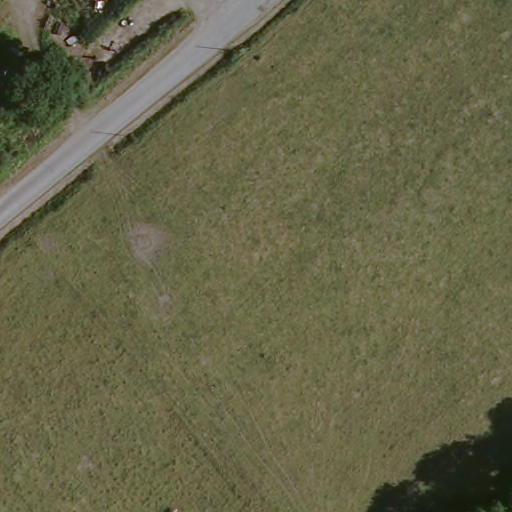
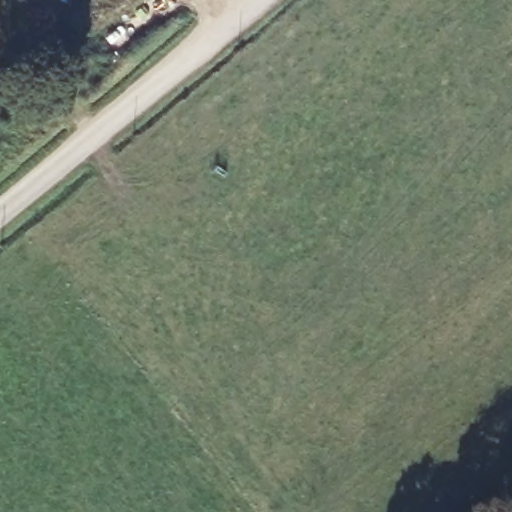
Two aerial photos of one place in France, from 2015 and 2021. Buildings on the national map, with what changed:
unchanged [(7,74),(0,66),(0,58),(18,44),(30,57),(7,74)]

